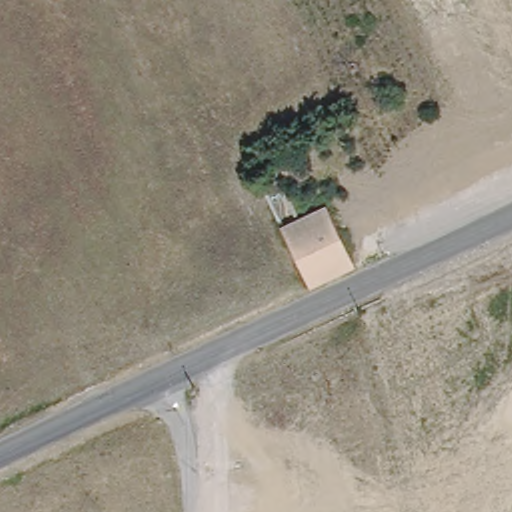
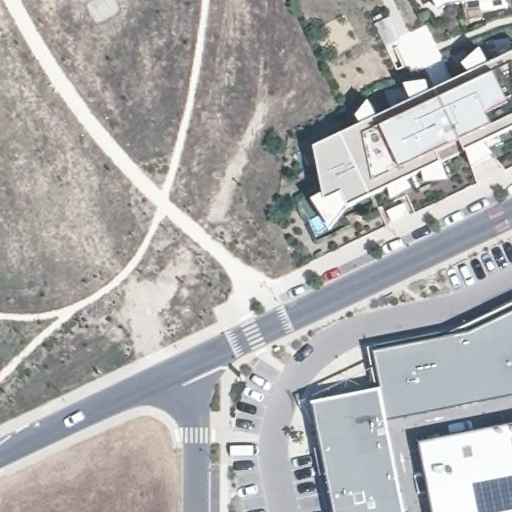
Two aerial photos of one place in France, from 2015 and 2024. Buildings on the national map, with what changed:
new [(463,5),(445,6),(440,9),(434,0),(462,0),(463,5)]
new [(463,5),(462,0),(489,0),(463,5)]
new [(468,74),(462,64),(480,48),(488,65),(468,74)]
new [(313,147),(512,53),(512,132),(511,130),(348,207),(330,226),(312,200),(323,194),(325,201),(323,193),(313,147)]
new [(410,101),(403,85),(428,81),(430,92),(428,93),(410,101)]
new [(360,125),(356,114),(370,102),(377,117),(360,125)]
new [(482,143),(492,155),(472,167),(466,151),(482,143)]
new [(448,180),(426,181),(422,172),(440,163),(448,180)]
new [(405,179),(412,189),(391,200),(387,188),(405,179)]
demolished [(355,260),(308,282),(281,223),(327,201),(355,260)]
new [(387,212),(405,204),(409,214),(392,222),(387,212)]
new [(372,351),(468,332),(512,316),(512,394),(385,419),(404,512),(333,512),(310,402),(379,388),(372,351)]
new [(512,512),(433,512),(419,441),(512,423),(512,512)]

